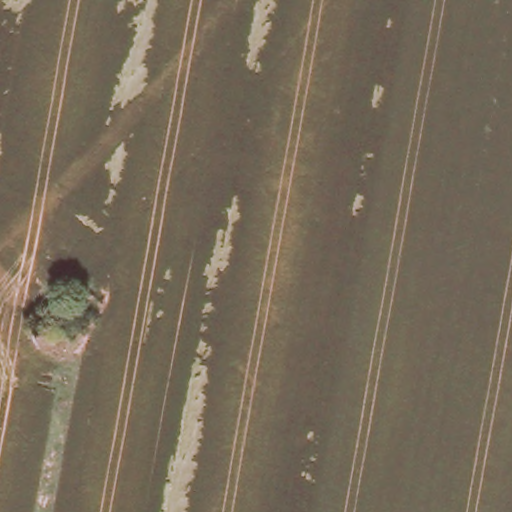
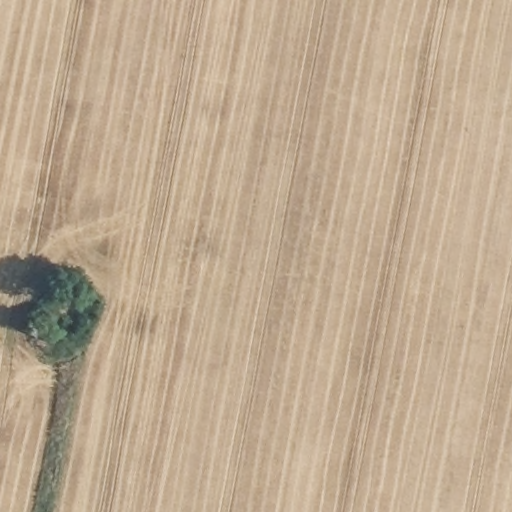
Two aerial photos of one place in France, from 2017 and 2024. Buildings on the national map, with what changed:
unchanged [(52,338),(40,328),(46,320),(58,330),(52,338)]

